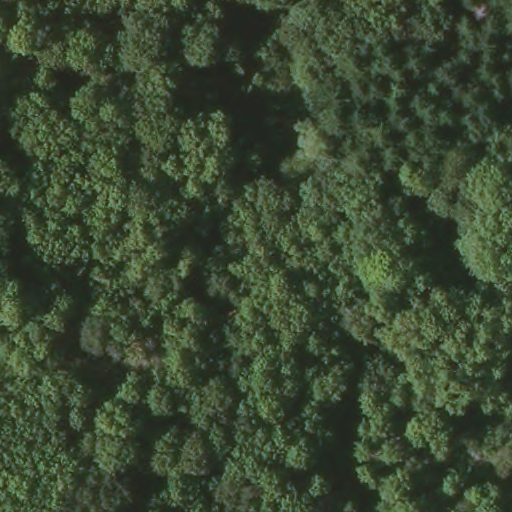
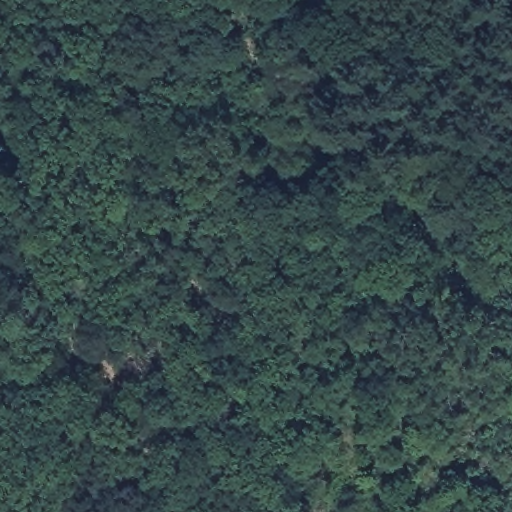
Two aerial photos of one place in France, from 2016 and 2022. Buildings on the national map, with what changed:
[]

